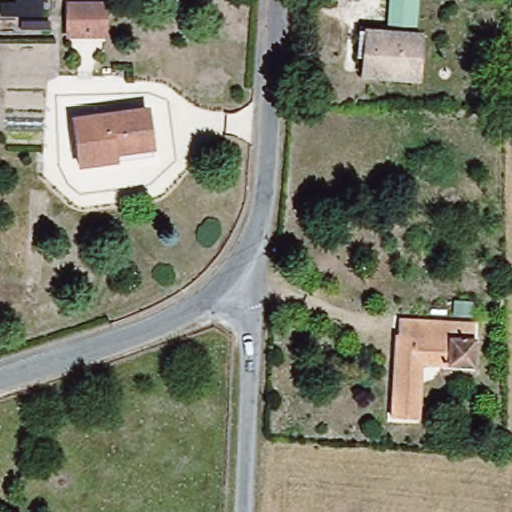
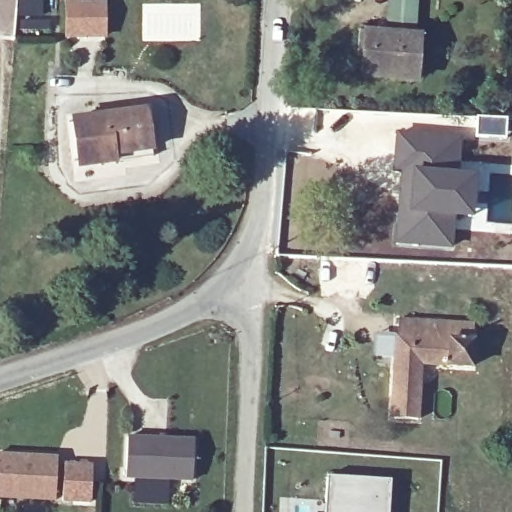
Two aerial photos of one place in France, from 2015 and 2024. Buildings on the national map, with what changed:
unchanged [(86,35),(67,35),(66,0),(105,2),(105,24),(105,35),(86,35)]
unchanged [(420,79),(365,76),(367,34),(421,38),(420,79)]
unchanged [(144,103),(150,151),(79,162),(71,113),(144,103)]
new [(476,115),(507,117),(506,139),(475,137),(476,115)]
new [(395,128),(430,127),(463,131),(460,172),(400,168),(400,172),(391,171),(395,128)]
new [(400,172),(400,168),(460,172),(476,173),(472,218),(455,217),(452,249),(393,243),(400,172)]
unchanged [(420,368),(418,421),(392,421),(395,319),(448,321),(467,322),(467,347),(466,369),(420,368)]
new [(124,437),(190,440),(189,480),(121,477),(124,437)]
new [(10,454),(21,455),(54,457),(51,499),(0,497),(0,454),(10,455),(10,454)]
new [(387,479),(385,512),(323,512),(324,475),(387,479)]

